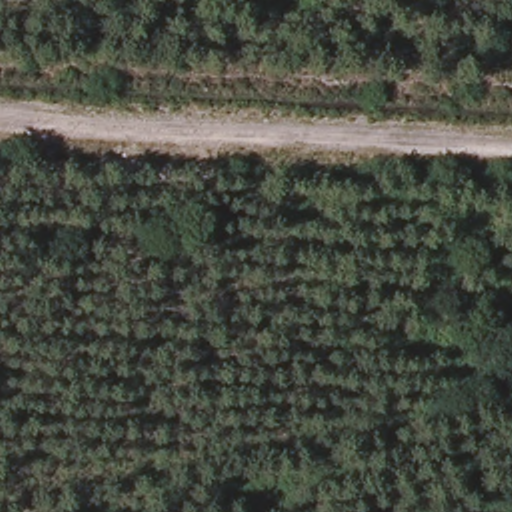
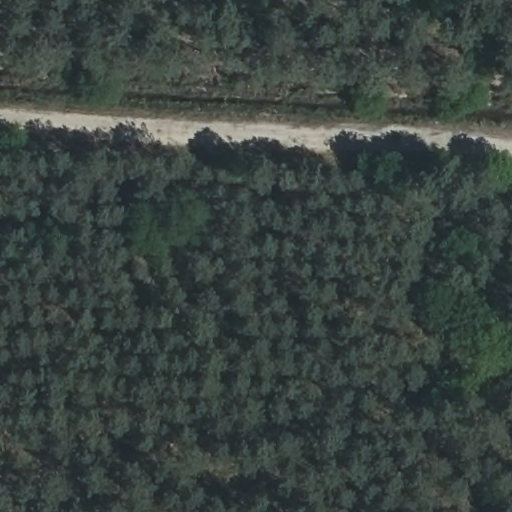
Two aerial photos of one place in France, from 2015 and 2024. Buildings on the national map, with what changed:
[]

